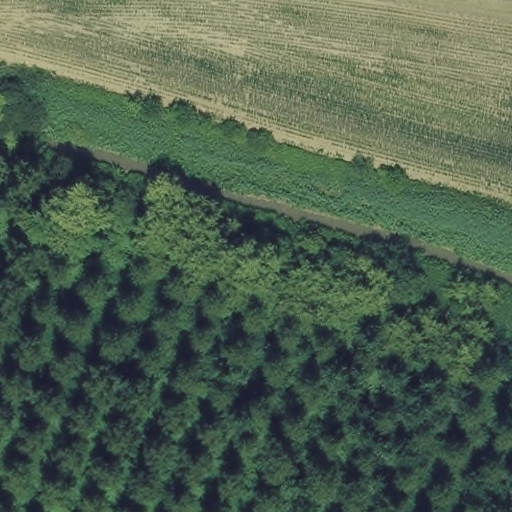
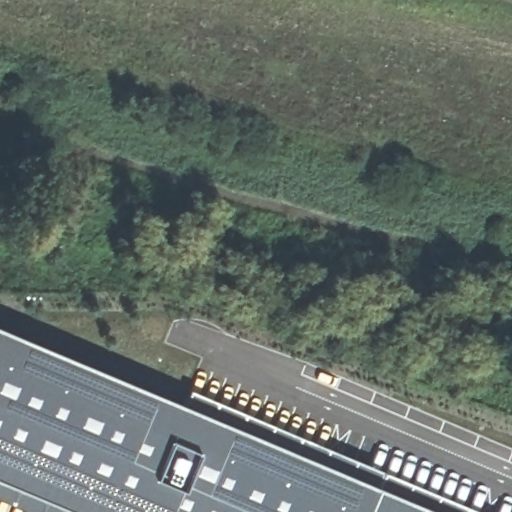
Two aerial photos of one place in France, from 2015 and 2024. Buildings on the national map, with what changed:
new [(443,512),(76,512),(0,482),(0,326),(443,512)]

